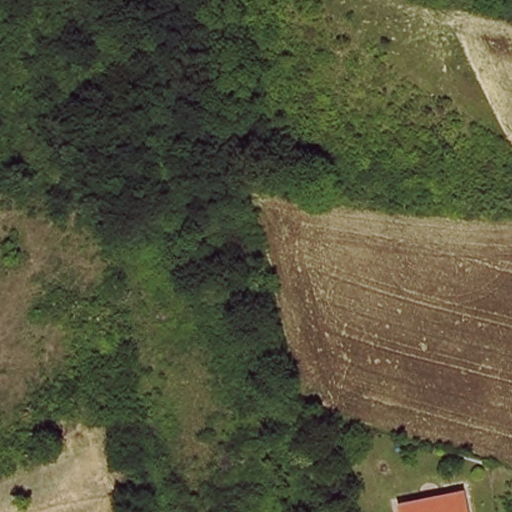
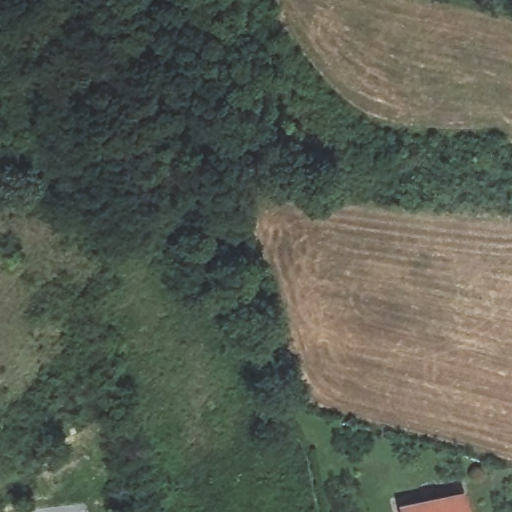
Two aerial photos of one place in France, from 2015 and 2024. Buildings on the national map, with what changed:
unchanged [(460,490),(465,512),(401,512),(398,501),(460,490)]

